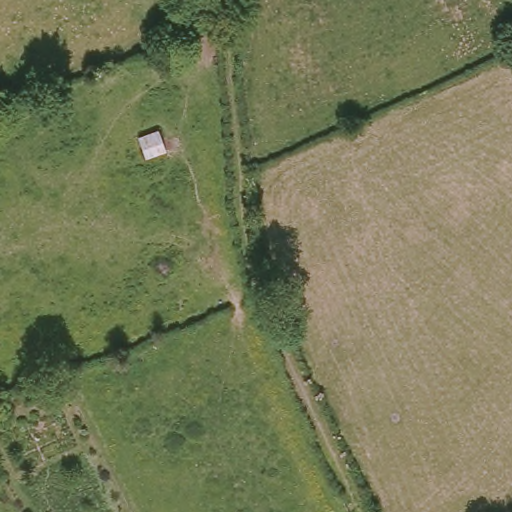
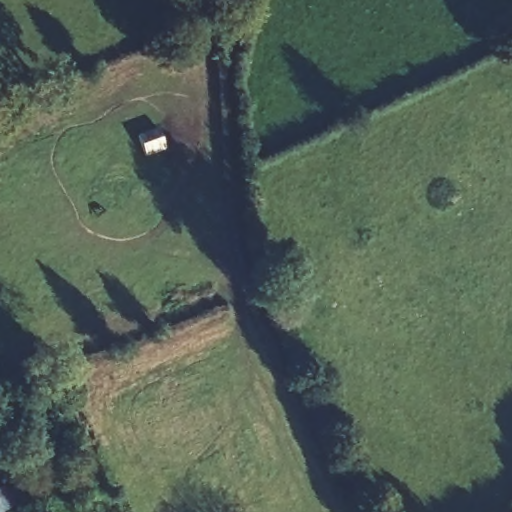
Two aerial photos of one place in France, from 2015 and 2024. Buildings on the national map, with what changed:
[]

